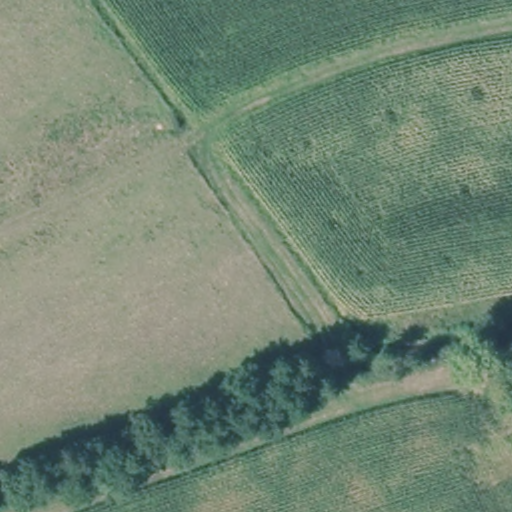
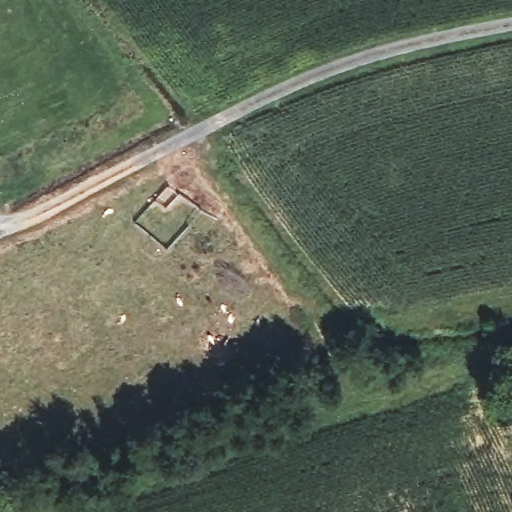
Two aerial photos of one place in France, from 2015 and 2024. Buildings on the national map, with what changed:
[]

